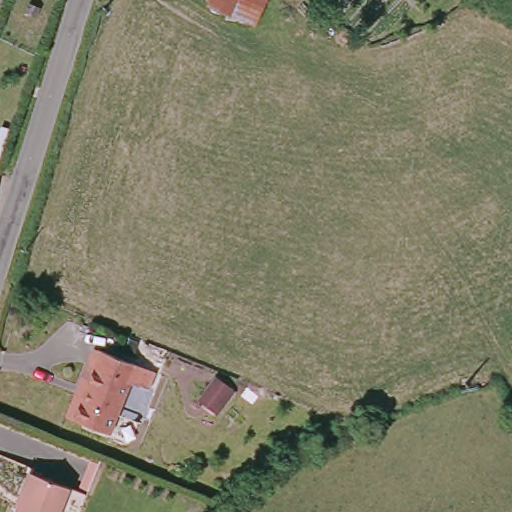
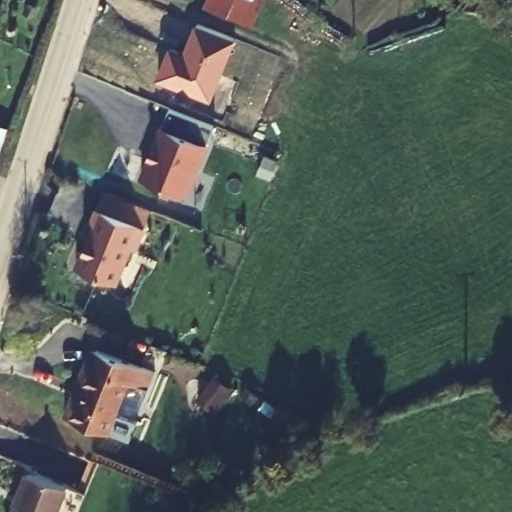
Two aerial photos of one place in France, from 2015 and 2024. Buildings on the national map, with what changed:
unchanged [(203,4),(205,0),(267,0),(256,26),(203,4)]
new [(210,103),(155,80),(169,45),(183,51),(195,24),(235,40),(210,103)]
new [(189,194),(145,175),(173,106),(217,125),(189,194)]
unchanged [(1,171),(0,174),(0,171),(1,171)]
new [(137,248),(133,246),(117,283),(78,266),(96,224),(93,222),(100,207),(106,189),(130,199),(153,209),(137,248)]
unchanged [(130,386),(108,434),(63,414),(73,391),(78,393),(96,352),(152,376),(145,393),(130,386)]
unchanged [(30,474),(63,489),(54,512),(15,512),(30,474)]

